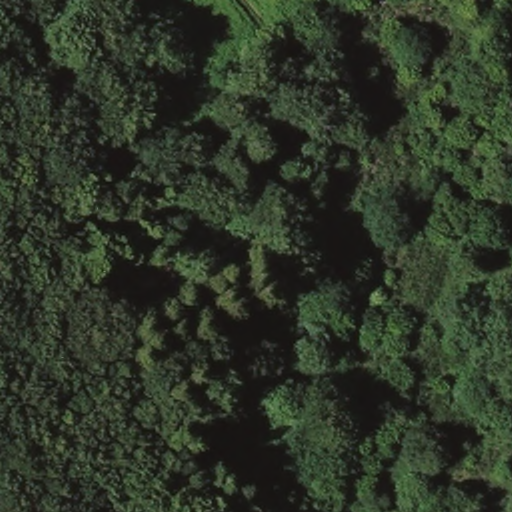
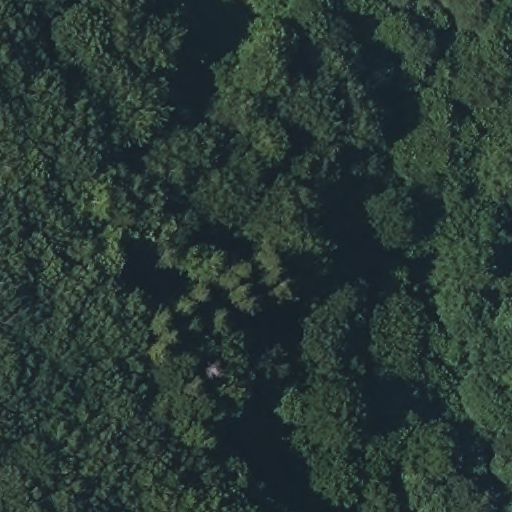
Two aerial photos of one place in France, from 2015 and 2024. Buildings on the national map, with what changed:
[]

